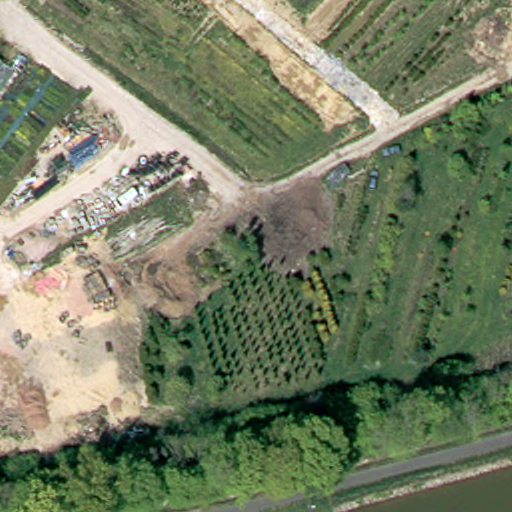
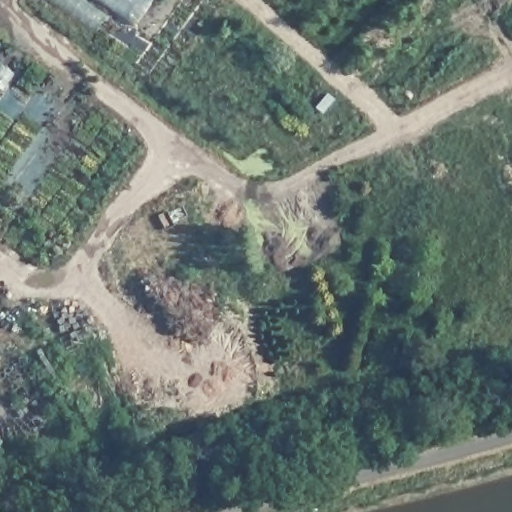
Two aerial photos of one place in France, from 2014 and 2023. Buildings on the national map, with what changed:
new [(132,26),(110,10),(94,35),(41,0),(150,0),(132,26)]

